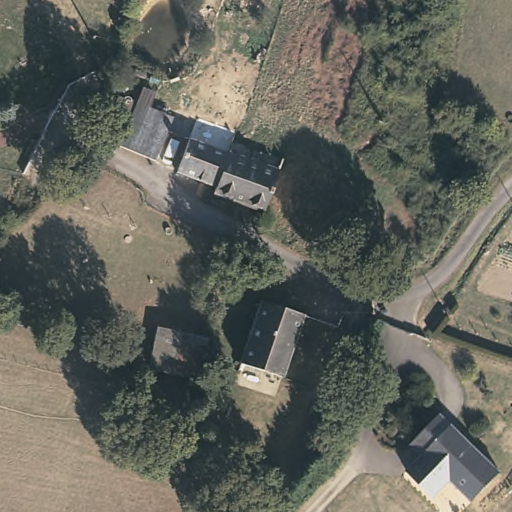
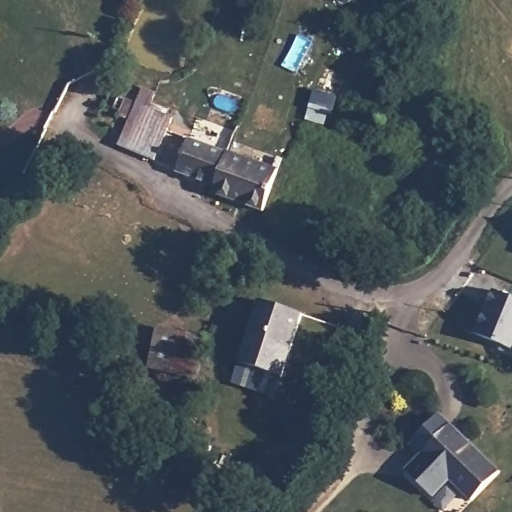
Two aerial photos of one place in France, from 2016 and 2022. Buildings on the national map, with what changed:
unchanged [(154,153),(120,137),(131,113),(121,110),(125,105),(116,100),(121,89),(139,98),(145,84),(157,90),(152,104),(172,112),(154,153)]
unchanged [(218,184),(180,169),(191,136),(231,150),(218,184)]
unchanged [(215,189),(218,184),(231,150),(278,167),(283,169),(269,209),(265,208),(215,189)]
new [(481,303),(489,306),(495,290),(512,297),(512,348),(470,330),(481,303)]
unchanged [(303,317),(281,379),(242,368),(264,303),(303,317)]
unchanged [(201,374),(150,358),(161,321),(210,335),(201,374)]
unchanged [(411,445),(441,415),(453,426),(465,439),(469,443),(497,471),(501,474),(472,503),(469,499),(451,481),(434,499),(407,472),(423,456),(411,445)]

